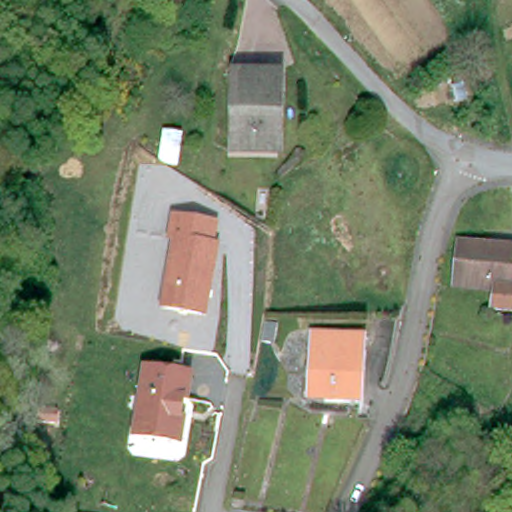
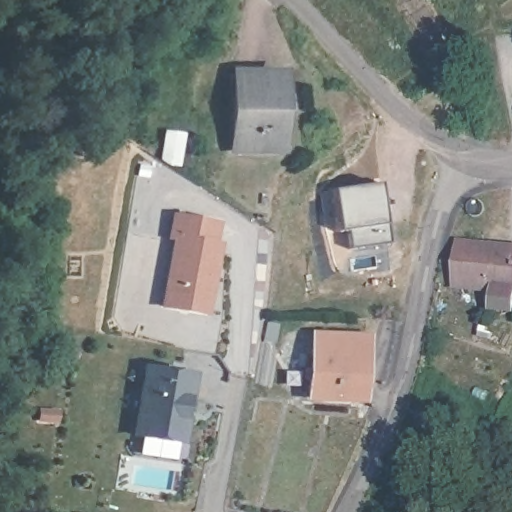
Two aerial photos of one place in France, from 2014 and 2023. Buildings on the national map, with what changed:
unchanged [(233,70),(276,70),(275,146),(230,146),(233,70)]
new [(350,229),(340,230),(334,190),(379,182),(384,216),(386,216),(389,241),(352,247),(350,229)]
unchanged [(210,284),(205,284),(204,291),(208,291),(205,317),(162,310),(172,242),(167,241),(171,219),(214,226),(211,247),(215,247),(210,284)]
unchanged [(512,247),(512,310),(495,308),(497,291),(456,287),(459,260),(461,242),(512,247)]
unchanged [(276,345),(263,343),(266,324),(279,325),(276,345)]
unchanged [(362,400),(311,397),(312,379),(306,379),(307,368),(313,369),(314,336),(365,339),(362,400)]
unchanged [(144,371),(189,380),(185,406),(181,405),(178,422),(180,426),(176,444),(172,446),(131,439),(144,371)]

